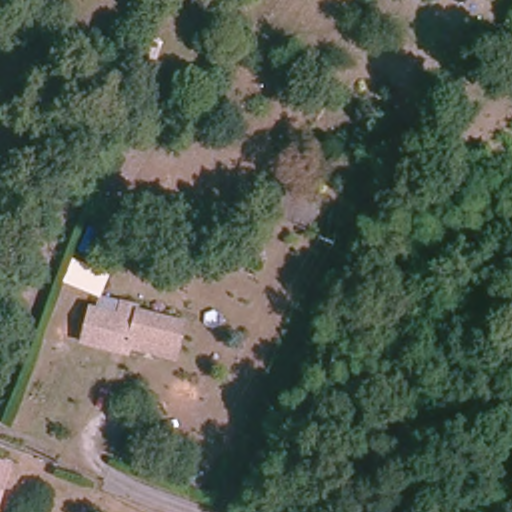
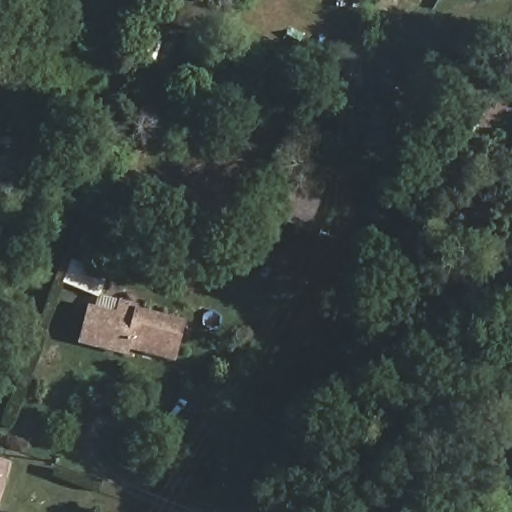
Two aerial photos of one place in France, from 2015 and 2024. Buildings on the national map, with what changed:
unchanged [(277,215),(288,183),(320,197),(313,231),(277,215)]
unchanged [(67,280),(75,261),(106,277),(99,296),(67,280)]
unchanged [(181,320),(172,357),(150,352),(126,346),(125,352),(78,341),(86,307),(113,313),(115,300),(135,305),(135,310),(163,316),(181,320)]
unchanged [(0,506),(0,463),(14,468),(0,506)]

